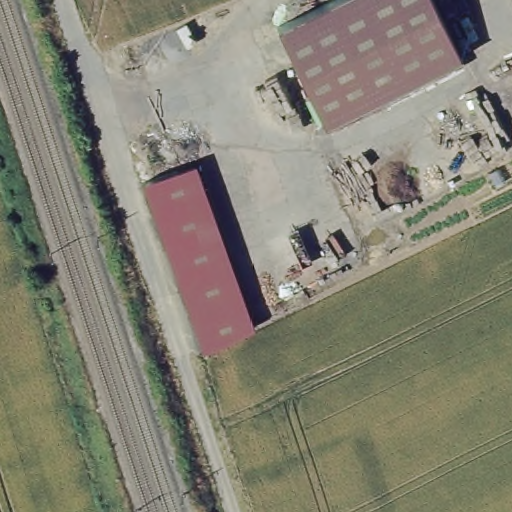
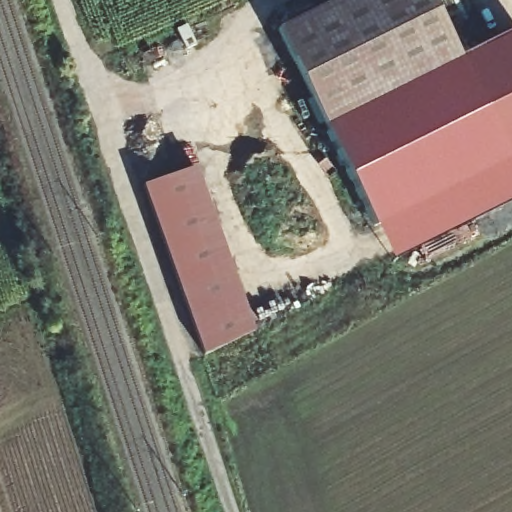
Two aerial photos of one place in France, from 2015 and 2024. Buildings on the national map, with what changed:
unchanged [(279,27),(334,0),(433,0),(462,60),(328,126),(279,27)]
new [(512,36),(512,199),(393,260),(328,126),(462,60),(512,36)]
unchanged [(257,327),(240,334),(179,165),(197,158),(257,327)]
unchanged [(240,334),(205,347),(144,177),(179,165),(240,334)]

